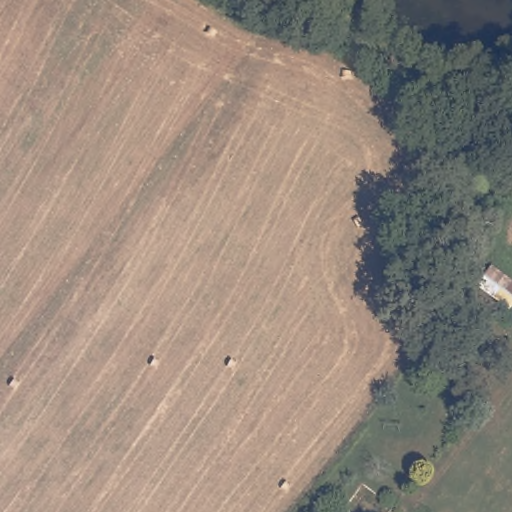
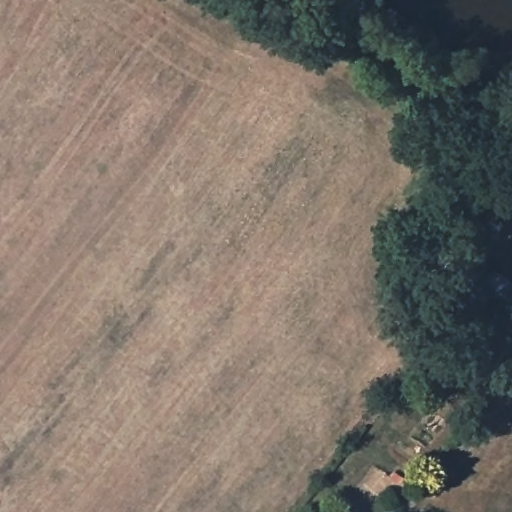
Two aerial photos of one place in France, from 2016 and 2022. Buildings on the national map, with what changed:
unchanged [(490,264),(512,281),(512,305),(509,309),(476,283),(490,264)]

